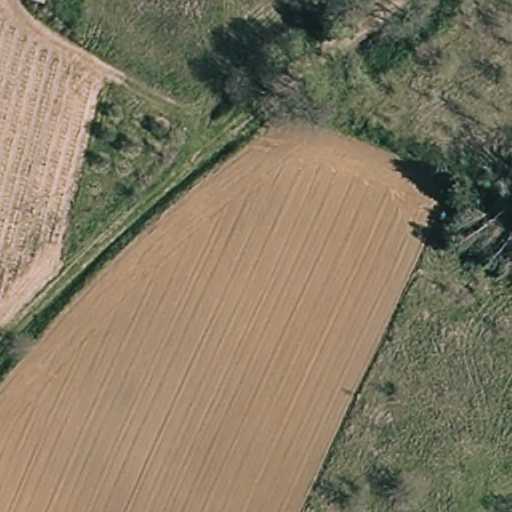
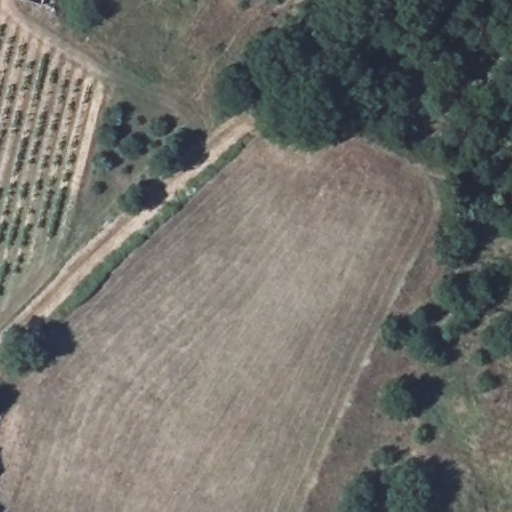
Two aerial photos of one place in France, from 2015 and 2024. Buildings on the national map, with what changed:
unchanged [(44,6),(21,2),(21,0),(45,0),(44,6)]

